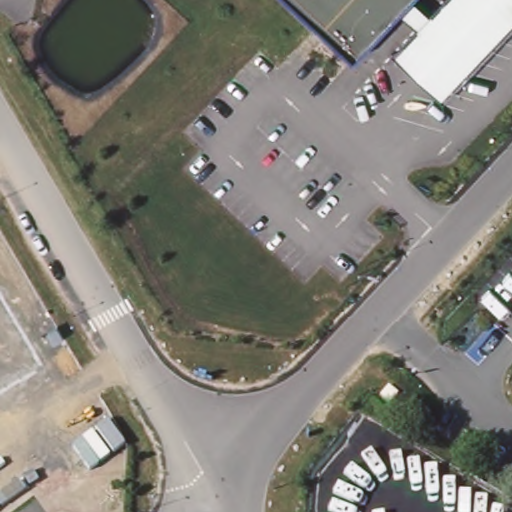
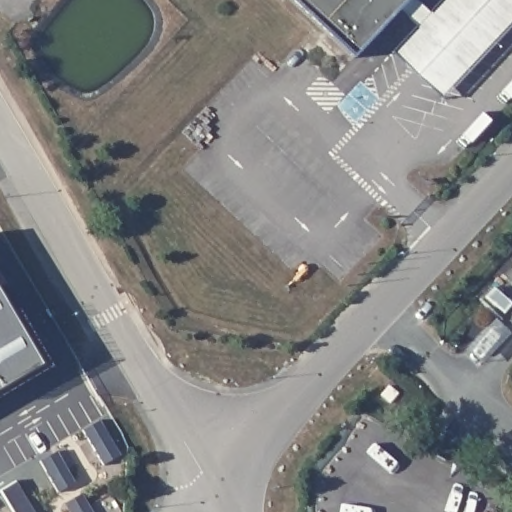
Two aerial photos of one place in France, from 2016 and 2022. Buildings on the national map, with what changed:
unchanged [(397,12),(351,60),(288,0),(408,0),(397,12)]
unchanged [(440,101),(390,54),(415,28),(397,12),(408,0),(412,0),(427,14),(441,0),(512,0),(512,25),(440,101)]
new [(0,390),(0,296),(42,366),(0,390)]
unchanged [(387,385),(397,393),(389,403),(380,395),(387,385)]

